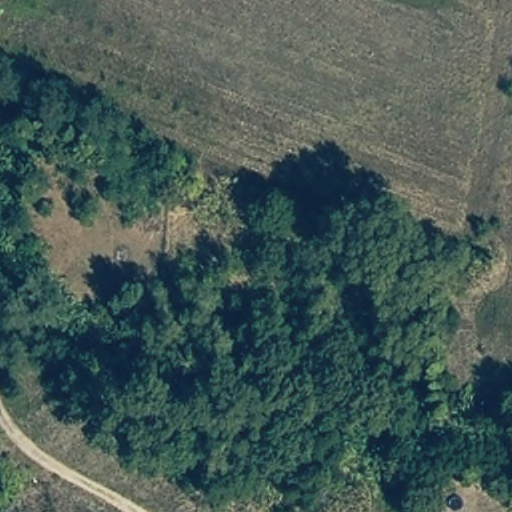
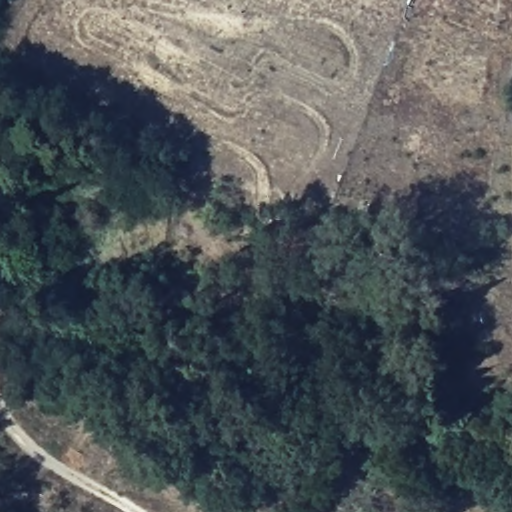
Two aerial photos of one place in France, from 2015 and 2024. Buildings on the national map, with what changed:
unchanged [(148,357),(118,342),(126,328),(158,344),(152,352),(148,357)]

